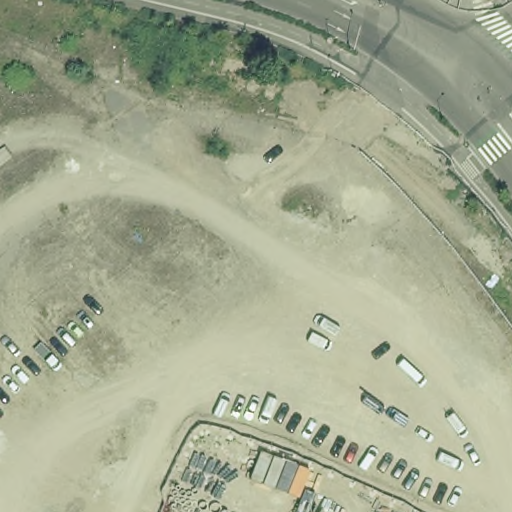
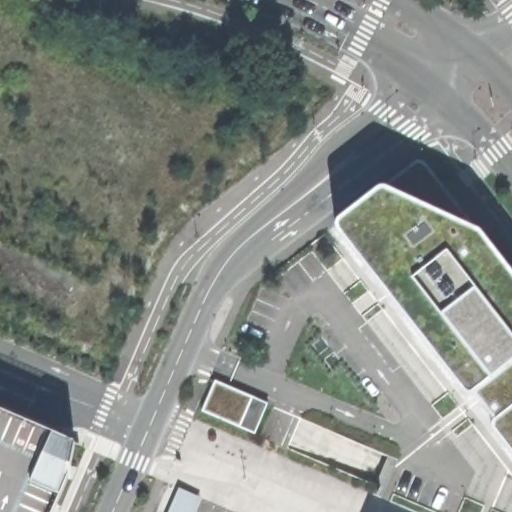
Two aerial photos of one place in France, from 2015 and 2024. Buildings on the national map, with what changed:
new [(420,152),(512,270),(512,367),(473,397),(464,406),(326,224),(420,152)]
new [(493,434),(491,428),(493,422),(473,397),(512,367),(512,458),(493,434)]
new [(214,381),(253,397),(260,401),(266,403),(268,403),(255,435),(240,429),(240,428),(201,412),(214,381)]
new [(75,445),(70,467),(68,478),(54,512),(0,512),(0,412),(73,443),(75,445)]
new [(388,457),(397,460),(381,498),(372,494),(388,457)]
new [(199,497),(193,512),(169,512),(178,489),(199,497)]

